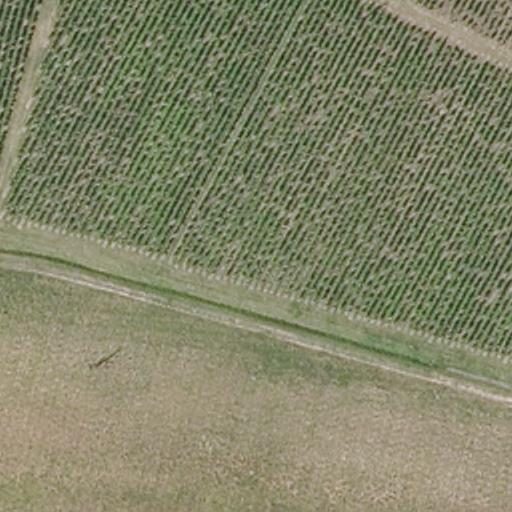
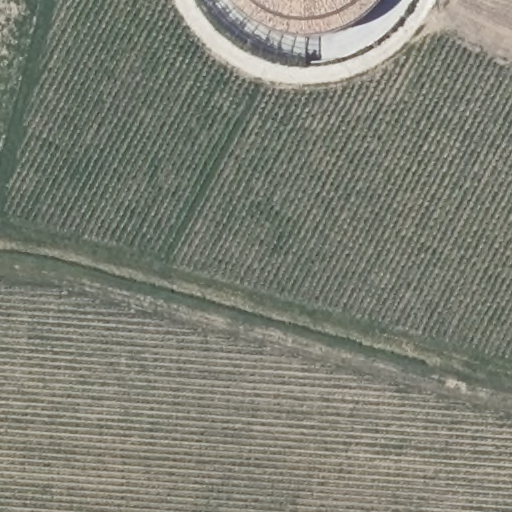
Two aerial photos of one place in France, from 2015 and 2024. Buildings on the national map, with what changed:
new [(372,5),(357,17),(340,26),(322,32),(303,34),(284,32),(266,26),(249,17),(234,5),(230,0),(376,0),(372,5)]

